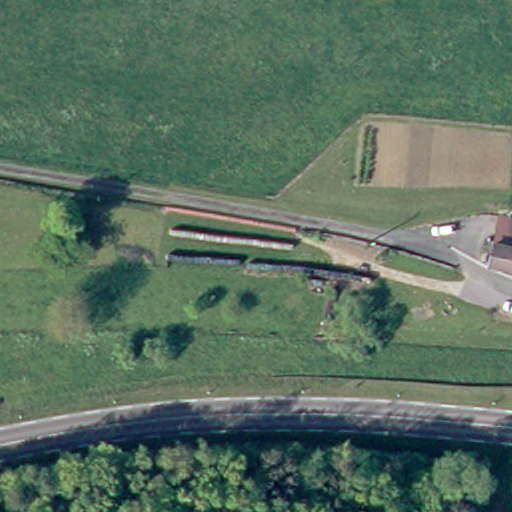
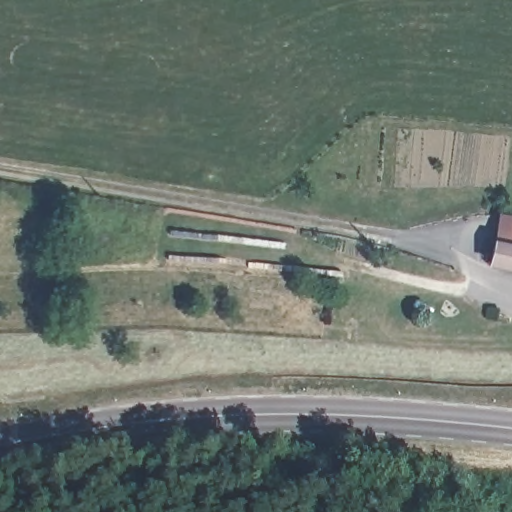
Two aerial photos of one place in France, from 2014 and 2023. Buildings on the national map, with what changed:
unchanged [(491,257),(495,236),(510,239),(512,225),(512,261),(491,257)]

